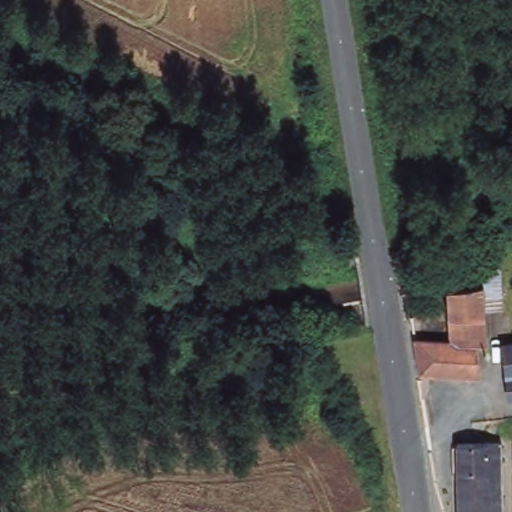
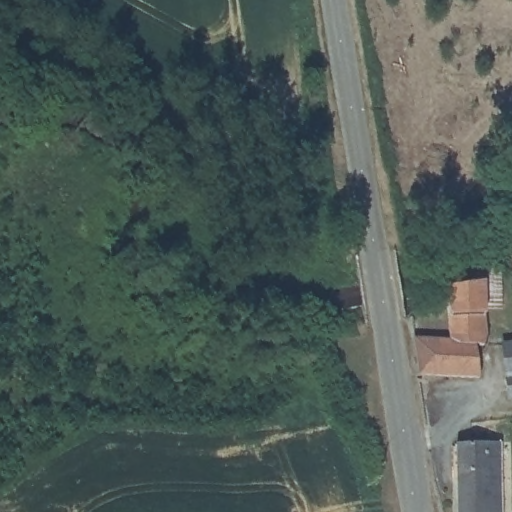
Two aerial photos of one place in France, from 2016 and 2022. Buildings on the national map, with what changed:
unchanged [(475,346),(481,377),(418,373),(414,338),(450,340),(445,282),(451,277),(459,268),(498,265),(498,296),(498,307),(485,308),(487,345),(475,346)]
unchanged [(512,338),(512,344),(511,338),(512,338)]
unchanged [(501,347),(512,347),(512,403),(508,403),(501,347)]
unchanged [(502,512),(459,512),(456,442),(463,442),(500,442),(502,512)]

